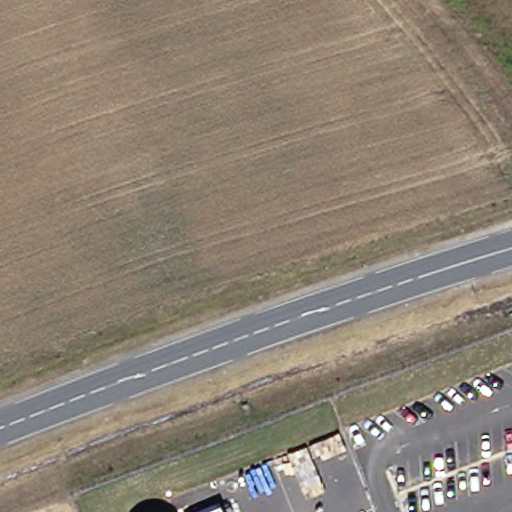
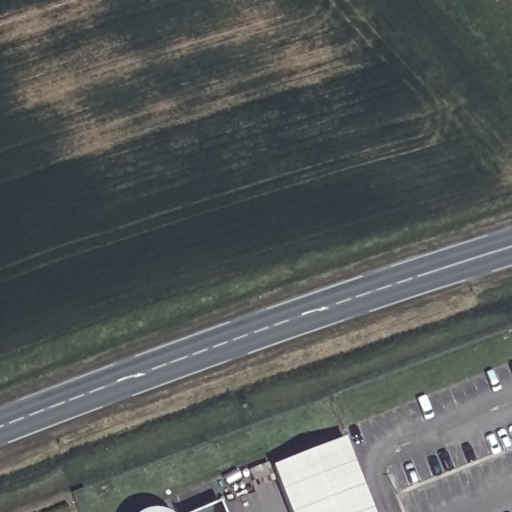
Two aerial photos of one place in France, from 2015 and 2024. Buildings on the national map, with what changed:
new [(272,467),(342,439),(371,512),(290,512),(272,467)]
unchanged [(219,504),(222,512),(199,512),(219,504)]

